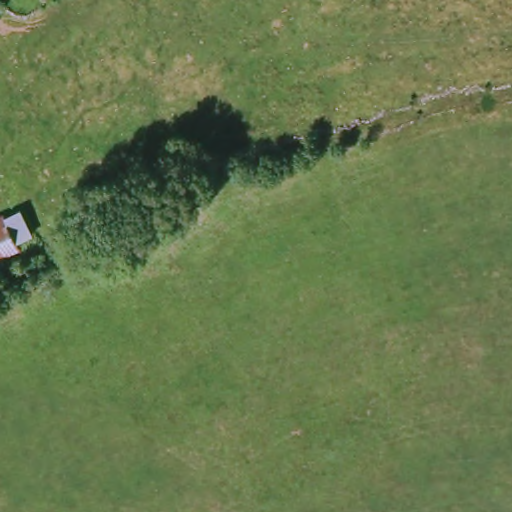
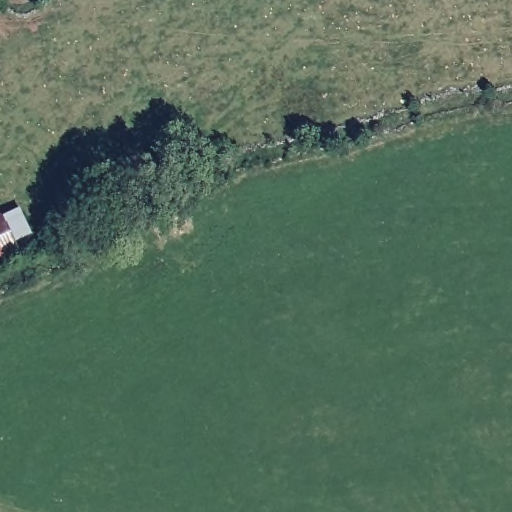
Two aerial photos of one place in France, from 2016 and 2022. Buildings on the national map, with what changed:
unchanged [(17,252),(0,260),(0,218),(2,217),(17,252)]

